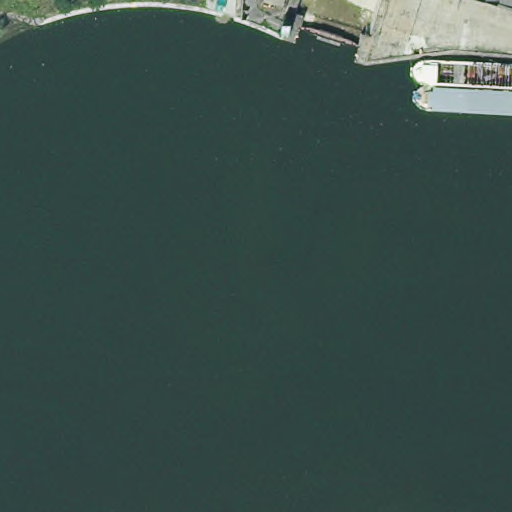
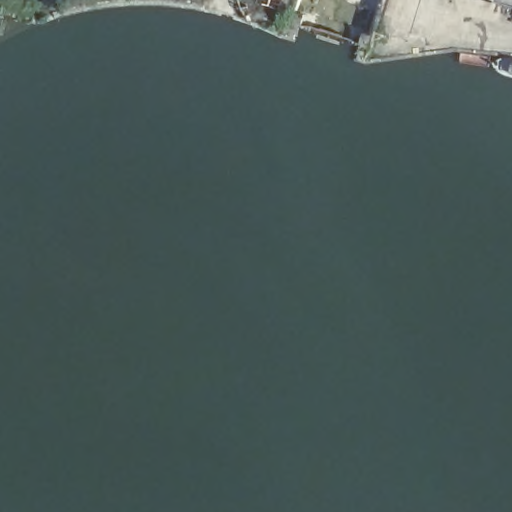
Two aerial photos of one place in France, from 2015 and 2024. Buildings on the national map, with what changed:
unchanged [(493,0),(512,0),(512,6),(493,0)]

